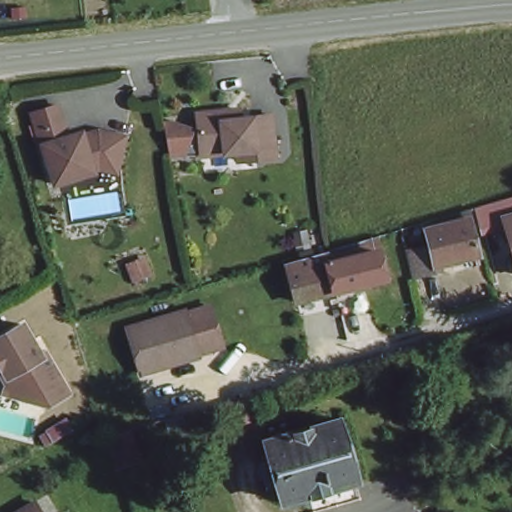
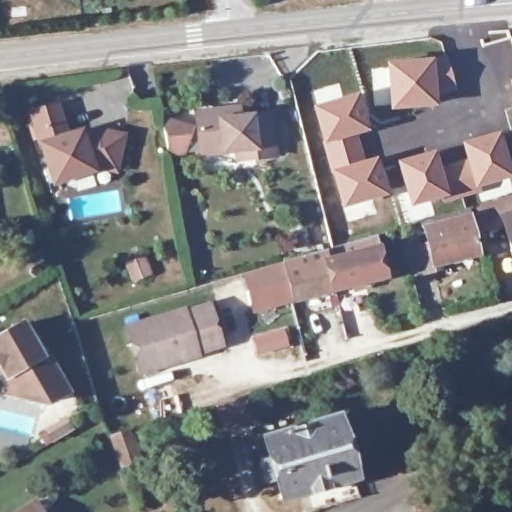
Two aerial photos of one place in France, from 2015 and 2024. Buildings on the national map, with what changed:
new [(447,56),(455,91),(438,94),(439,106),(389,111),(385,61),(447,56)]
new [(512,78),(512,99),(507,80),(512,78)]
new [(341,210),(329,170),(321,145),(311,105),(358,91),(370,131),(357,135),(365,159),(376,156),(388,194),(341,210)]
unchanged [(233,140),(198,147),(196,143),(166,149),(166,146),(165,146),(158,121),(163,120),(163,116),(188,122),(193,121),(190,106),(223,100),(233,98),(234,108),(263,102),(271,143),(253,146),(235,150),(233,140)]
unchanged [(79,180),(61,186),(33,118),(56,108),(70,139),(82,134),(85,136),(98,130),(125,135),(121,169),(98,167),(98,172),(79,180)]
new [(464,158),(459,141),(499,130),(512,171),(512,178),(450,198),(441,166),(464,158)]
new [(436,149),(441,166),(450,198),(409,206),(395,161),(436,149)]
unchanged [(472,250),(427,262),(429,268),(405,275),(402,265),(398,249),(422,242),(415,217),(459,204),(472,250)]
unchanged [(511,257),(499,212),(512,209),(512,262),(511,257)]
unchanged [(336,290),(293,300),(283,263),(310,255),(324,251),(331,248),(341,245),(370,237),(374,250),(381,279),(336,290)]
unchanged [(148,273),(130,279),(123,261),(143,251),(148,273)]
new [(283,263),(293,300),(256,311),(245,274),(283,263)]
unchanged [(185,309),(187,311),(209,305),(221,346),(198,353),(198,355),(141,372),(127,327),(185,309)]
unchanged [(13,392),(0,389),(0,382),(1,371),(0,369),(0,329),(18,319),(36,350),(40,348),(59,381),(63,388),(42,400),(13,392)]
new [(284,330),(289,346),(260,354),(256,339),(284,330)]
new [(250,395),(259,424),(225,434),(217,405),(250,395)]
unchanged [(328,430),(343,427),(357,483),(340,488),(304,497),(285,502),(280,482),(269,486),(265,469),(275,467),(270,447),(296,440),(294,432),(326,424),(328,430)]
unchanged [(153,457),(135,463),(126,433),(145,428),(153,457)]
unchanged [(37,512),(6,512),(28,498),(37,512)]

